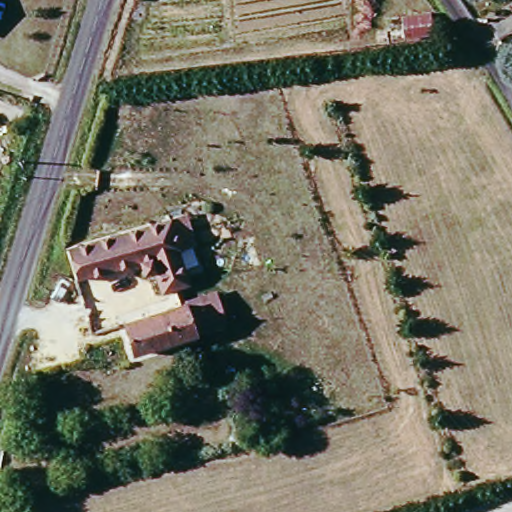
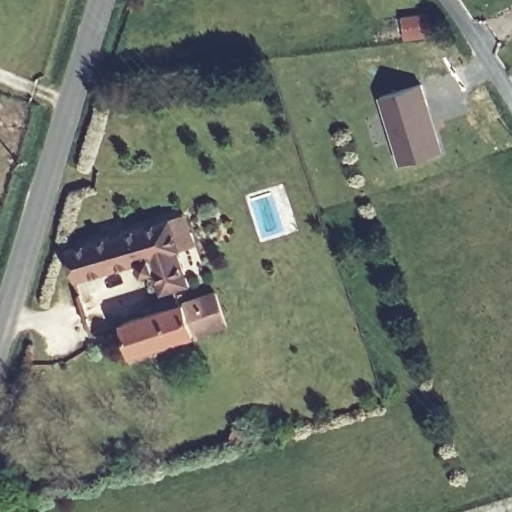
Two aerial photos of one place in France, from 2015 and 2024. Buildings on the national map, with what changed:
new [(427,104),(424,105),(428,121),(429,121),(440,152),(402,164),(381,96),(421,85),(427,104)]
unchanged [(156,261),(81,282),(71,246),(180,219),(188,252),(177,255),(186,289),(165,295),(156,261)]
unchanged [(205,317),(214,343),(202,346),(200,336),(136,353),(129,323),(190,307),(194,320),(205,317)]
unchanged [(94,336),(90,323),(114,317),(118,330),(94,336)]

